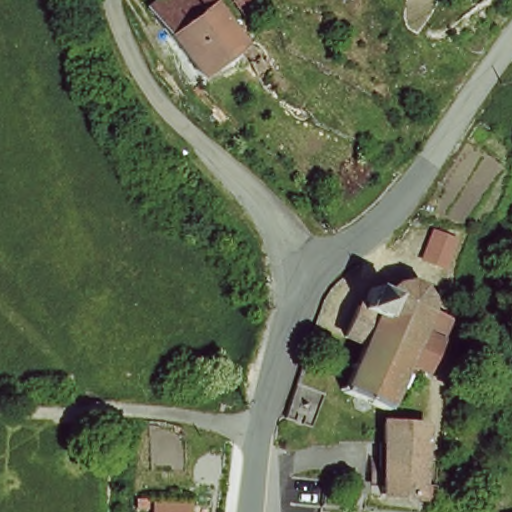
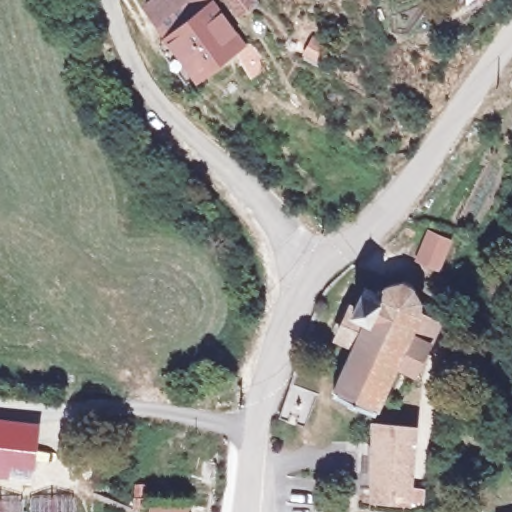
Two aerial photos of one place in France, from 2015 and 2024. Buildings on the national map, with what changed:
unchanged [(240,41),(195,75),(142,0),(211,0),(230,26),(240,41)]
unchanged [(261,0),(264,2),(238,16),(225,0),(261,0)]
unchanged [(441,272),(414,262),(427,229),(456,239),(441,272)]
unchanged [(337,337),(350,306),(354,308),(364,287),(376,293),(378,288),(392,294),(395,290),(401,287),(406,286),(412,287),(417,290),(421,295),(422,301),(422,307),(419,311),(442,321),(420,370),(399,362),(376,407),(334,391),(354,343),(337,337)]
new [(42,421),(37,480),(0,476),(0,416),(42,421)]
unchanged [(420,427),(411,497),(373,493),(380,424),(420,427)]
new [(147,505),(189,506),(188,512),(147,512),(147,505)]

